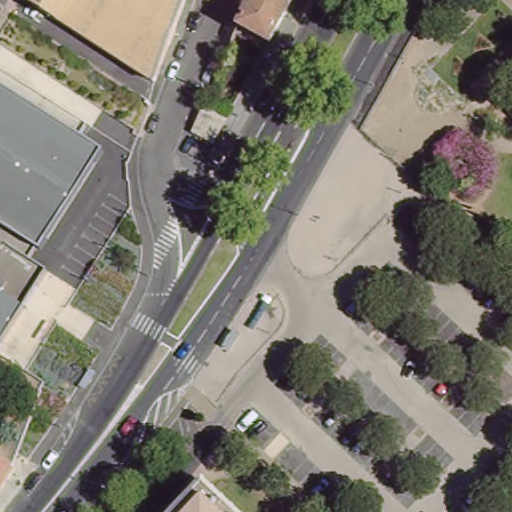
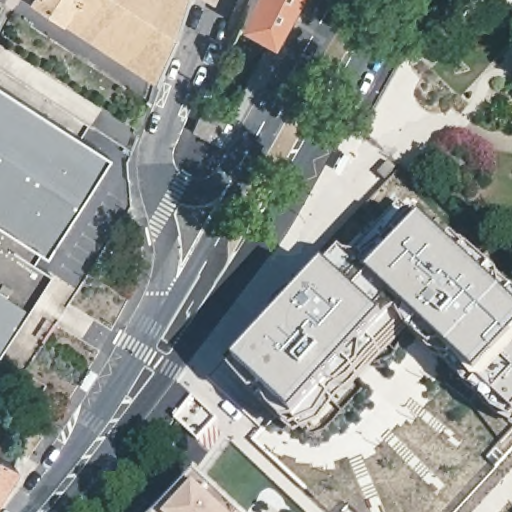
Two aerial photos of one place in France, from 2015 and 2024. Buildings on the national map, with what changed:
unchanged [(25,0),(180,0),(148,81),(25,0)]
unchanged [(287,0),(265,40),(233,24),(244,0),(287,0)]
unchanged [(41,251),(47,262),(0,345),(0,84),(105,151),(41,251)]
unchanged [(214,142),(192,130),(205,100),(230,112),(214,142)]
new [(485,407),(483,399),(470,391),(449,367),(422,348),(410,333),(350,394),(330,400),(298,436),(280,422),(245,387),(242,378),(283,334),(283,323),(300,296),(315,287),(342,262),(357,255),(402,206),(447,246),(467,248),(482,264),(504,283),(512,292),(512,426),(485,407)]
unchanged [(0,479),(0,453),(12,460),(0,479)]
unchanged [(197,483),(204,490),(227,512),(169,512),(197,483)]

